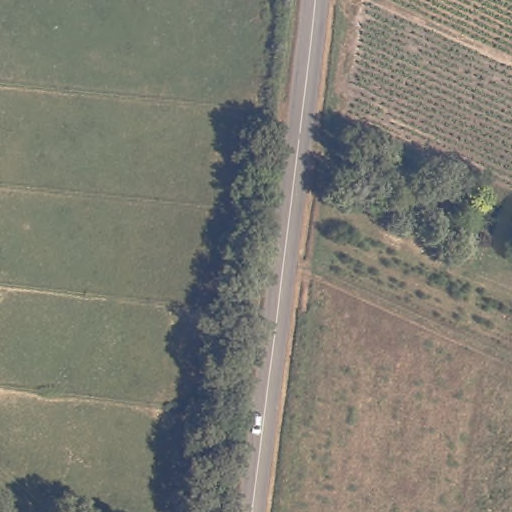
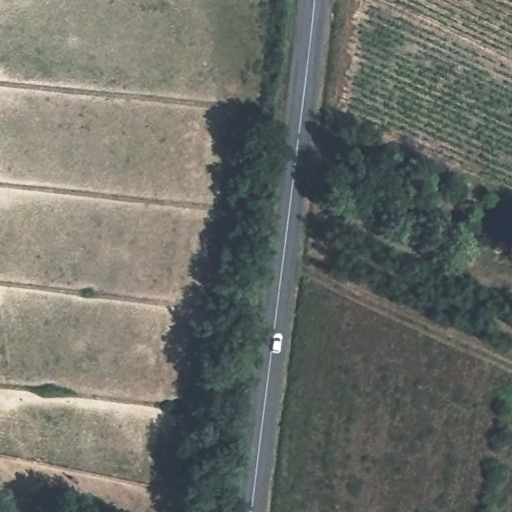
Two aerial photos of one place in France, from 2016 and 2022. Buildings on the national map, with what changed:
[]

